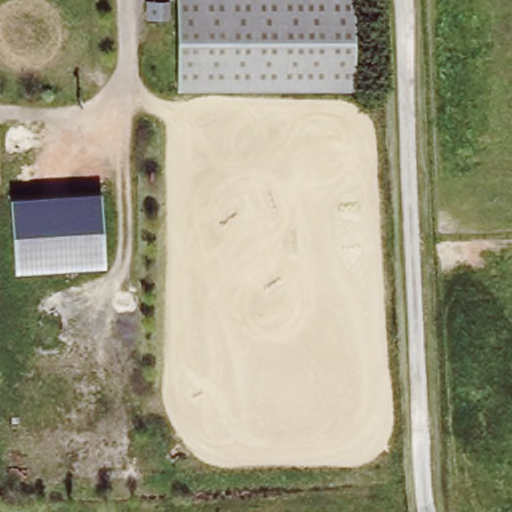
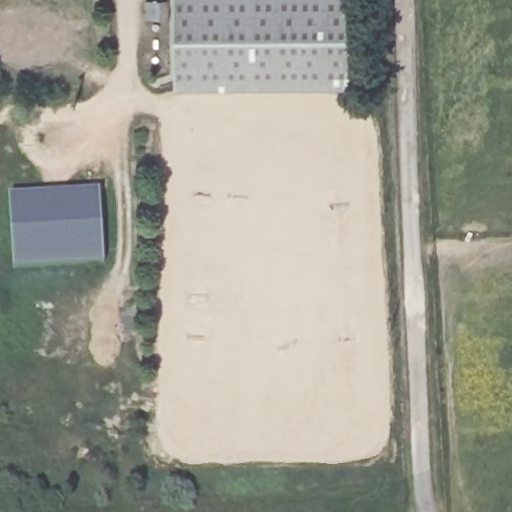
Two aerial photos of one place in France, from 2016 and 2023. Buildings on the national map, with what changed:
unchanged [(354,80),(178,88),(174,0),(350,0),(354,80)]
unchanged [(102,187),(107,256),(18,260),(16,191),(102,187)]

